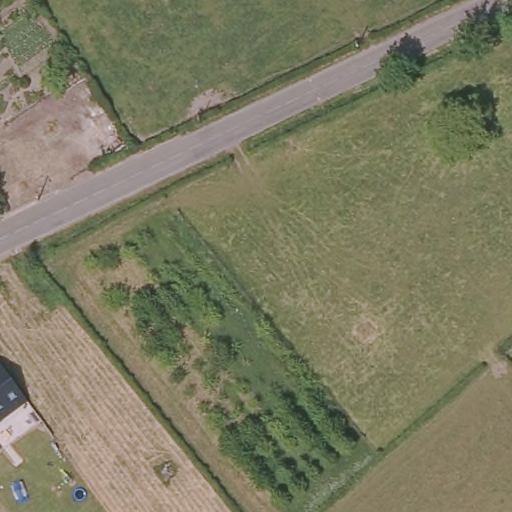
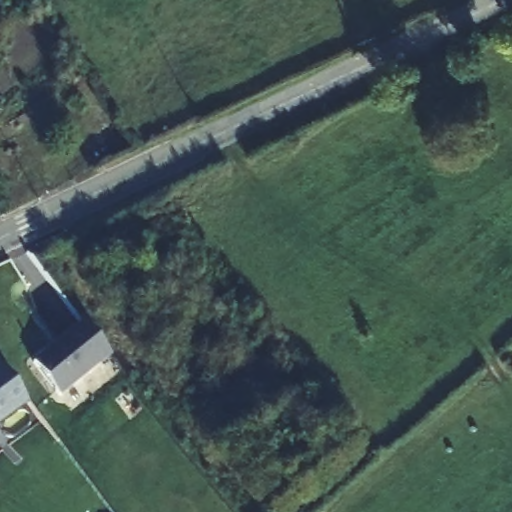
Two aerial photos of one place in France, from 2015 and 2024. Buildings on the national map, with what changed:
new [(110,354),(59,397),(31,362),(83,321),(110,354)]
unchanged [(0,418),(0,361),(1,360),(22,388),(28,397),(0,418)]

